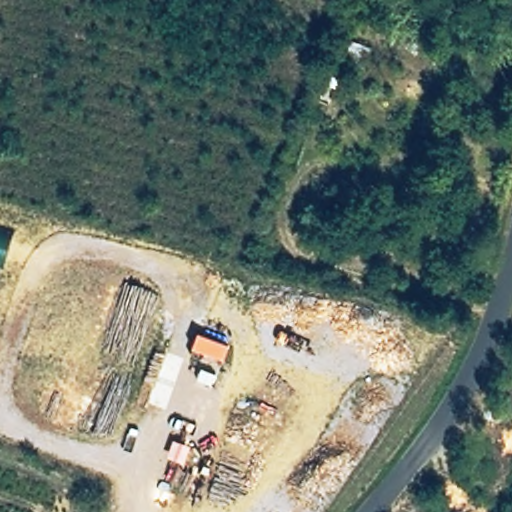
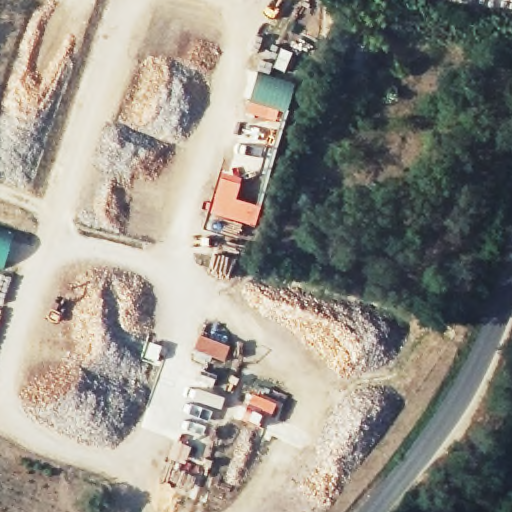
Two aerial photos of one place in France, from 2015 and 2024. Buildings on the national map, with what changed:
new [(284,125),(246,114),(258,73),(295,83),(284,125)]
new [(242,179),(235,200),(261,208),(255,228),(210,214),(223,173),(242,179)]
new [(5,267),(0,266),(0,227),(13,231),(5,267)]

